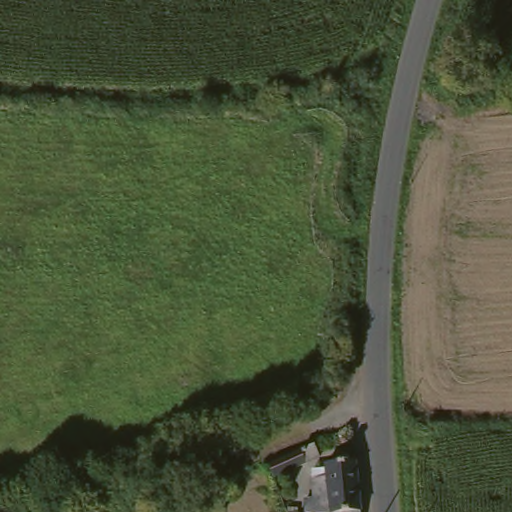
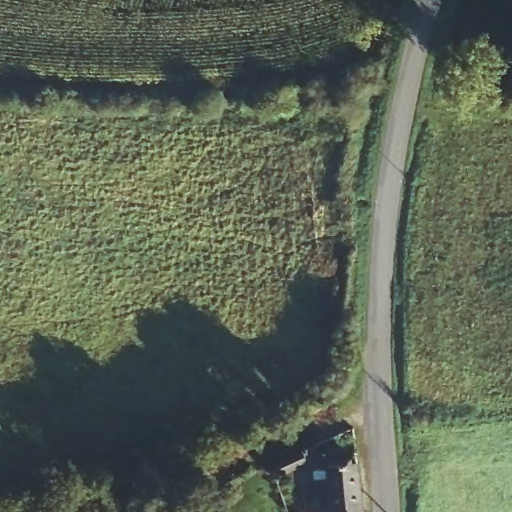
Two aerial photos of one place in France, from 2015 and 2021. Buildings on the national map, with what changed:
unchanged [(312,461),(265,480),(261,468),(306,447),(312,461)]
unchanged [(311,512),(307,512),(307,468),(355,458),(359,512),(323,512),(322,510),(311,512)]

